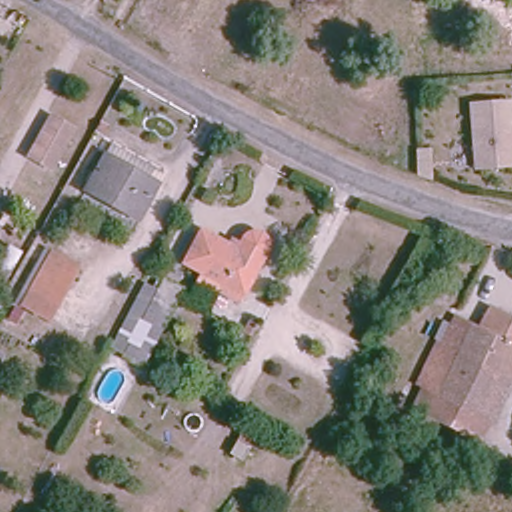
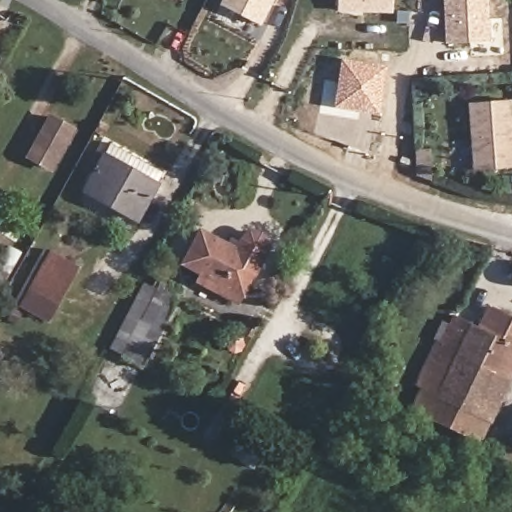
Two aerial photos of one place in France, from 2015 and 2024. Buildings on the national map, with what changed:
new [(262,26),(220,4),(223,0),(275,0),(262,26)]
new [(338,10),(338,0),(394,0),(393,12),(338,10)]
new [(491,41),(446,43),(444,0),(491,0),(491,41)]
new [(342,58),(387,62),(380,114),(335,107),(342,58)]
unchanged [(472,168),(468,100),(506,99),(510,166),(472,168)]
unchanged [(50,120),(71,130),(49,172),(27,161),(50,120)]
unchanged [(160,186),(141,222),(85,193),(94,177),(87,174),(92,164),(100,168),(105,157),(160,186)]
unchanged [(236,252),(245,235),(254,230),(263,233),(268,238),(268,249),(238,307),(213,295),(219,284),(236,252)]
unchanged [(184,264),(200,231),(236,252),(219,284),(184,264)]
unchanged [(6,288),(0,284),(0,263),(9,244),(25,253),(6,288)]
unchanged [(81,269),(54,321),(24,307),(51,252),(81,269)]
unchanged [(160,277),(182,288),(144,367),(121,355),(160,277)]
unchanged [(412,411),(454,319),(480,330),(488,313),(512,324),(512,376),(490,424),(481,444),(452,430),(412,411)]
unchanged [(5,354),(0,366),(0,351),(5,354)]
unchanged [(236,442),(244,426),(256,432),(247,448),(236,442)]

